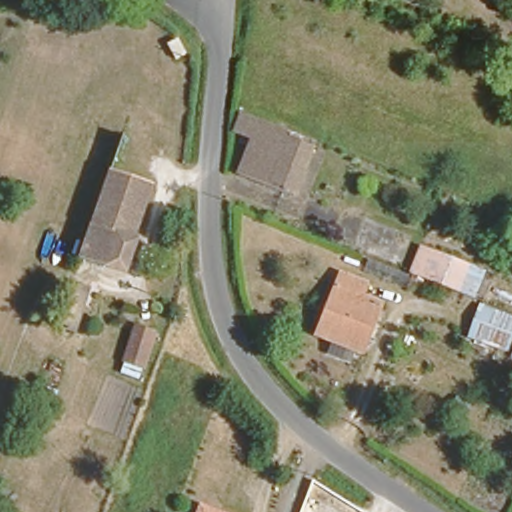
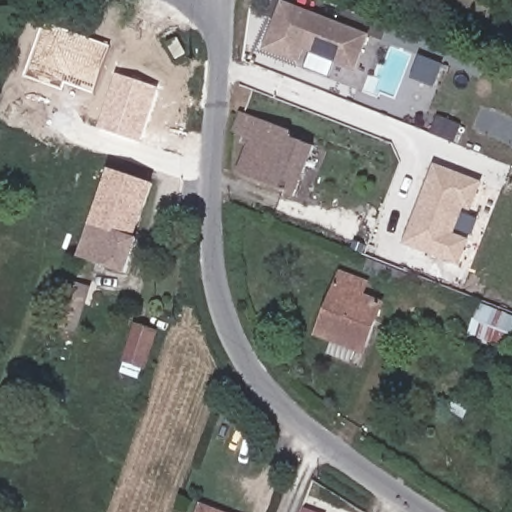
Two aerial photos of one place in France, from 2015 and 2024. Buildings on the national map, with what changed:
new [(355,66),(302,47),(297,60),(264,47),(281,2),(367,35),(355,66)]
new [(94,94),(65,85),(62,90),(25,77),(45,22),(112,46),(94,94)]
new [(411,80),(420,56),(443,65),(434,88),(411,80)]
new [(140,142),(98,128),(116,74),(159,88),(140,142)]
unchanged [(286,129),(285,132),(311,142),(292,195),(232,171),(246,137),(229,130),(236,110),(286,129)]
new [(432,135),(438,117),(461,125),(455,144),(432,135)]
new [(454,234),(470,240),(459,267),(402,245),(434,164),(481,183),(471,212),(464,209),(454,234)]
unchanged [(147,181),(148,185),(130,232),(135,235),(121,271),(75,253),(108,165),(147,181)]
demolished [(428,247),(475,265),(467,293),(419,276),(428,247)]
unchanged [(404,276),(402,283),(358,268),(361,261),(404,276)]
unchanged [(331,357),(335,346),(336,343),(314,335),(335,273),(363,283),(359,296),(377,303),(370,321),(360,351),(353,350),(352,353),(348,362),(331,357)]
unchanged [(512,356),(477,343),(487,311),(512,320),(512,356)]
unchanged [(114,367),(119,356),(131,321),(153,330),(140,362),(136,375),(114,367)]
unchanged [(208,512),(196,512),(197,508),(208,512)]

